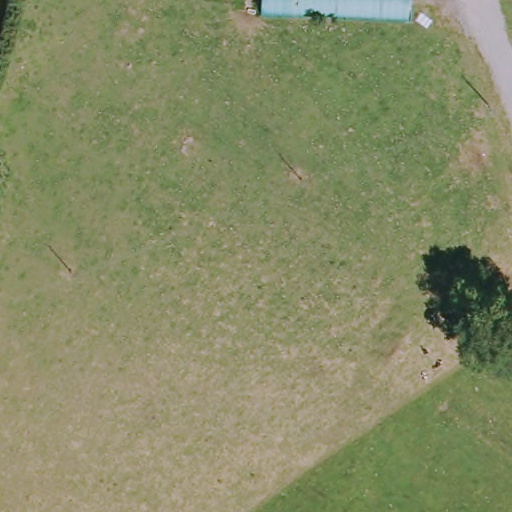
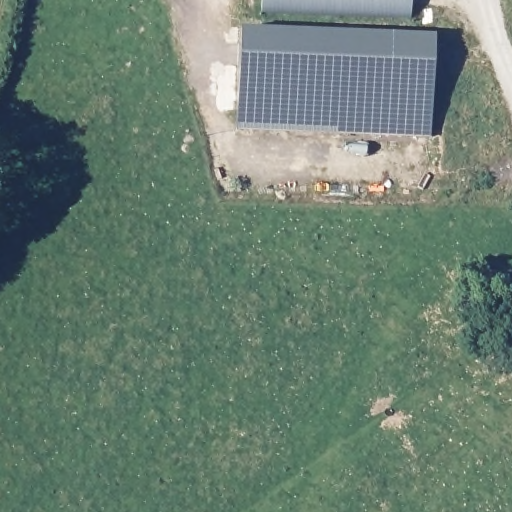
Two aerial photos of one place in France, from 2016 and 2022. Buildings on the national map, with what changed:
unchanged [(265,16),(265,0),(413,0),(413,24),(265,16)]
new [(239,29),(434,38),(431,139),(236,131),(239,29)]

